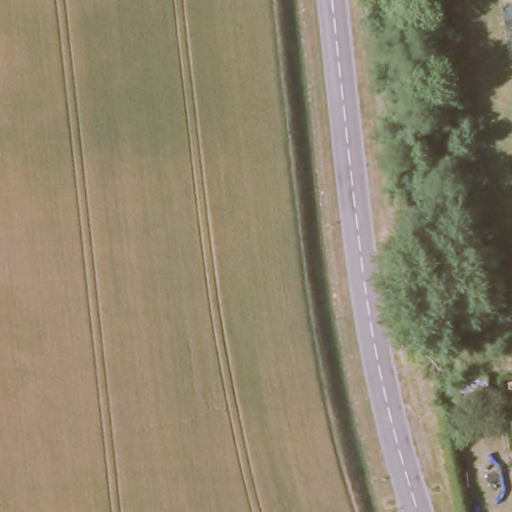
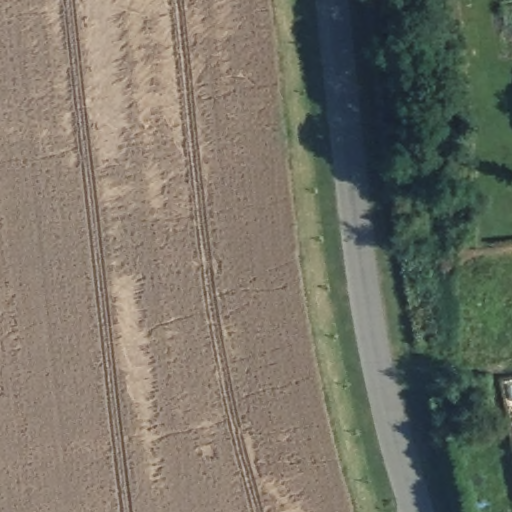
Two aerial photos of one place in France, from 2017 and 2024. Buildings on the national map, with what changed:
unchanged [(467,391),(468,378),(487,376),(488,390),(469,391),(467,391)]

